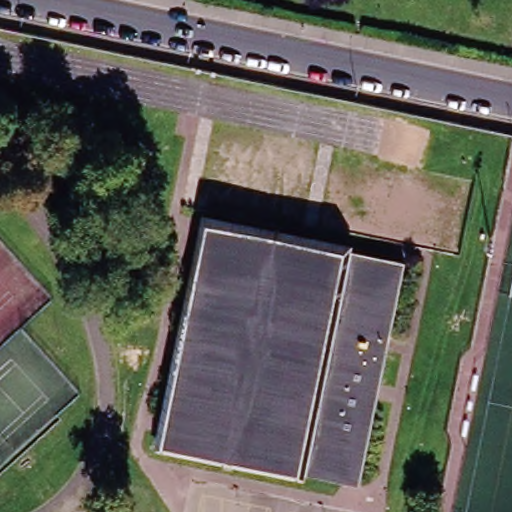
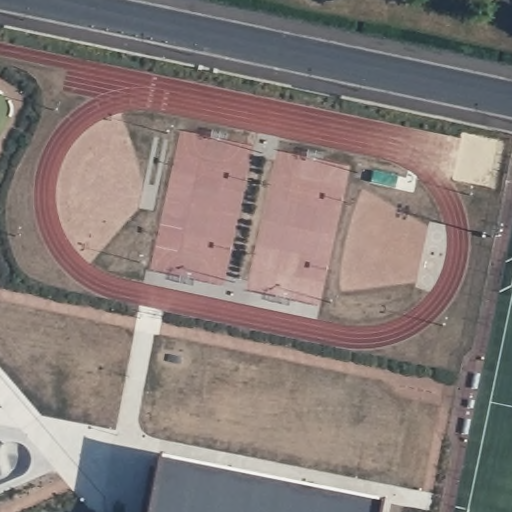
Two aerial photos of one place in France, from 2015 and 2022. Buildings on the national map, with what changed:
demolished [(339,251),(405,264),(359,488),(344,485),(157,448),(160,434),(204,223),(339,251)]
new [(478,375),(476,386),(470,385),(473,375),(478,375)]
new [(473,401),(471,411),(465,410),(467,400),(473,401)]
new [(148,512),(159,458),(379,502),(377,512),(148,512)]

